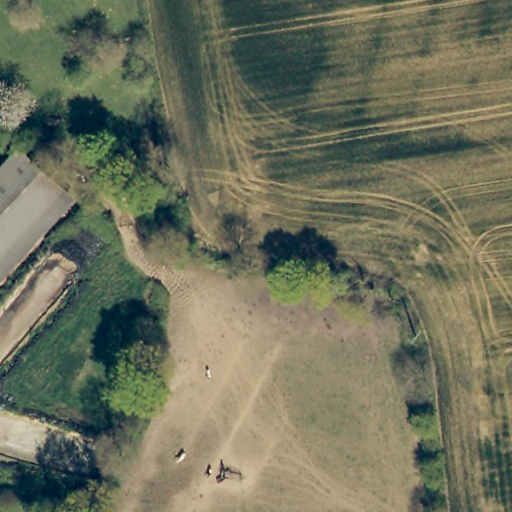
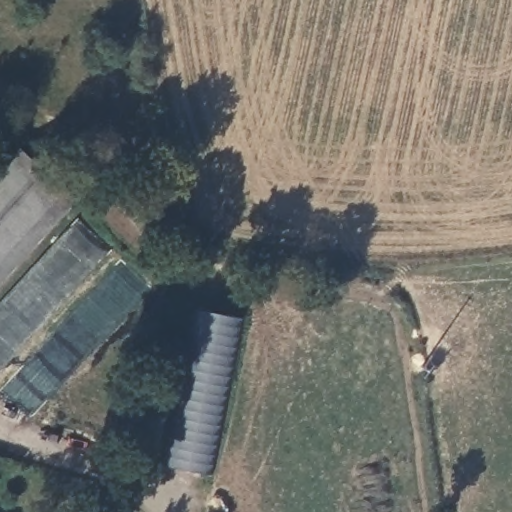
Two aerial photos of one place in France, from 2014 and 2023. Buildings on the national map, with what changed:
unchanged [(62,186),(0,254),(0,166),(18,145),(62,186)]
new [(75,201),(0,283),(0,254),(62,186),(75,201)]
new [(207,474),(160,464),(192,308),(237,317),(207,474)]

